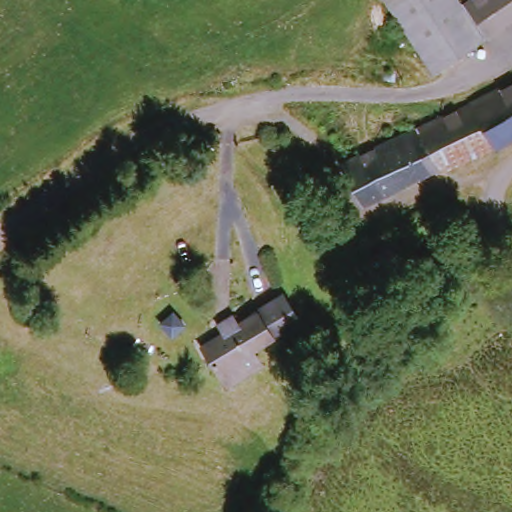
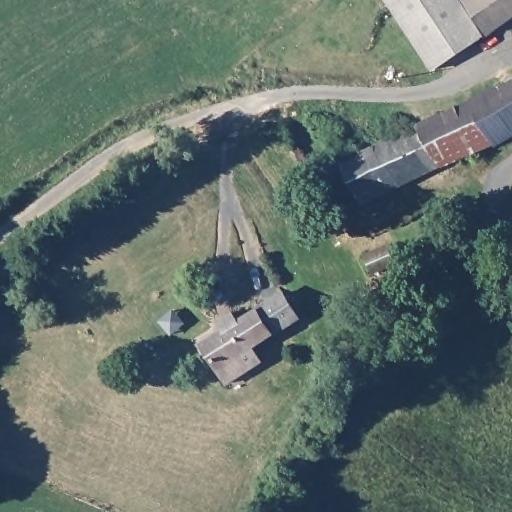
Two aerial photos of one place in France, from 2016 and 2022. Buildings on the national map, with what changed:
unchanged [(433,69),(389,7),(399,0),(457,0),(483,34),(433,69)]
unchanged [(469,2),(473,0),(512,0),(512,18),(489,34),(469,2)]
unchanged [(414,126),(512,79),(512,129),(436,166),(414,126)]
unchanged [(414,126),(436,166),(361,202),(339,162),(414,126)]
unchanged [(389,242),(396,257),(371,268),(366,254),(389,242)]
unchanged [(223,327),(218,317),(228,312),(233,321),(251,311),(278,295),(290,317),(266,332),(245,346),(246,348),(252,361),(221,380),(212,367),(196,343),(223,327)]

